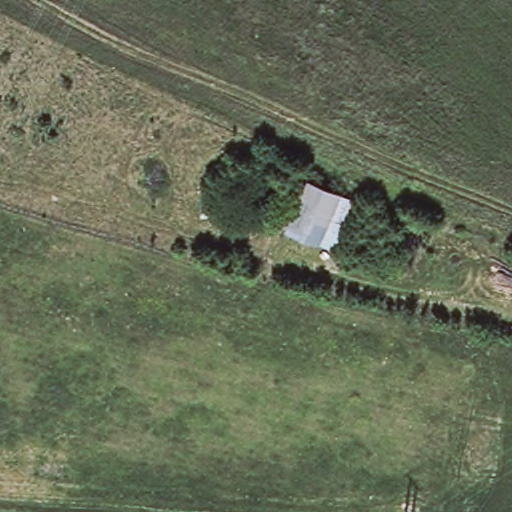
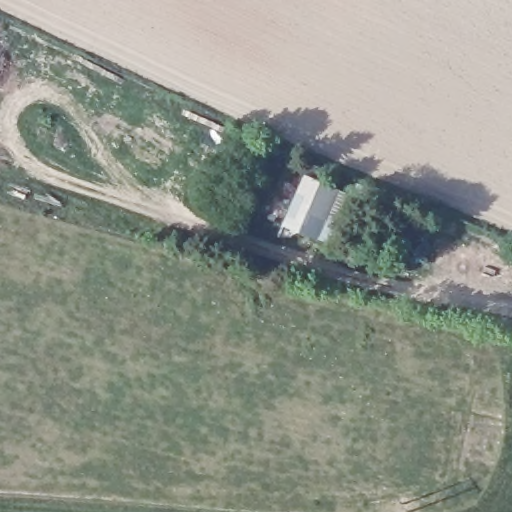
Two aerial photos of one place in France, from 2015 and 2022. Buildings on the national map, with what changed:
unchanged [(353,200),(332,244),(284,225),(304,179),(353,200)]
unchanged [(471,428),(502,431),(499,455),(465,455),(471,428)]

